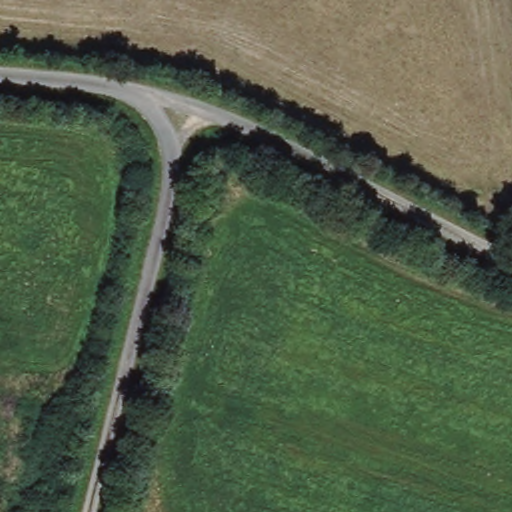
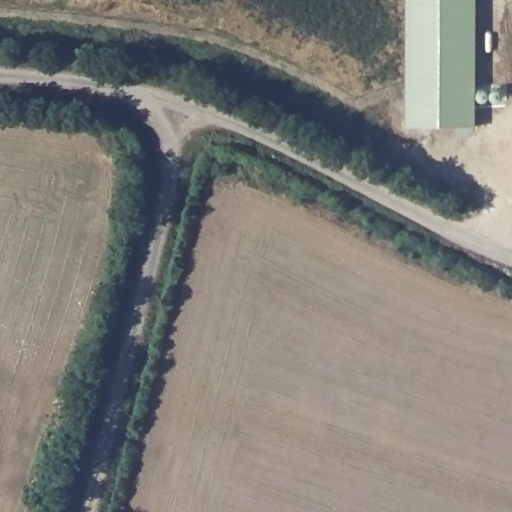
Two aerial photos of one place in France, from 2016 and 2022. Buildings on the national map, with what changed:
new [(477,0),(477,124),(406,124),(407,0),(477,0)]

